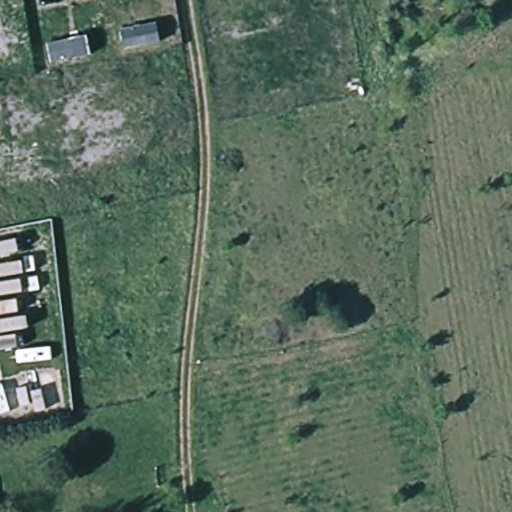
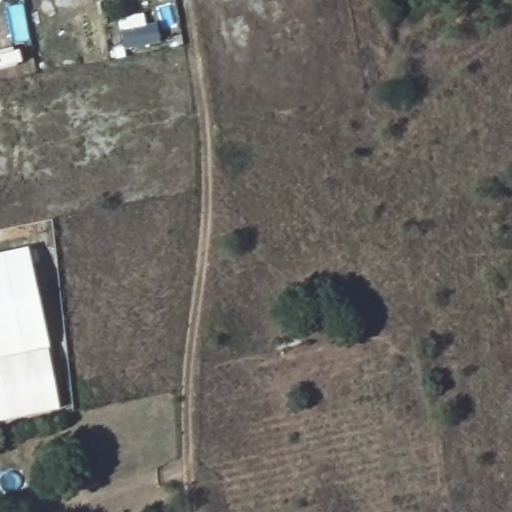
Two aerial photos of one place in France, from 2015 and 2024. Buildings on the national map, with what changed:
unchanged [(120,27),(158,21),(161,45),(125,50),(120,27)]
new [(48,349),(60,410),(0,422),(0,254),(28,247),(48,349)]

